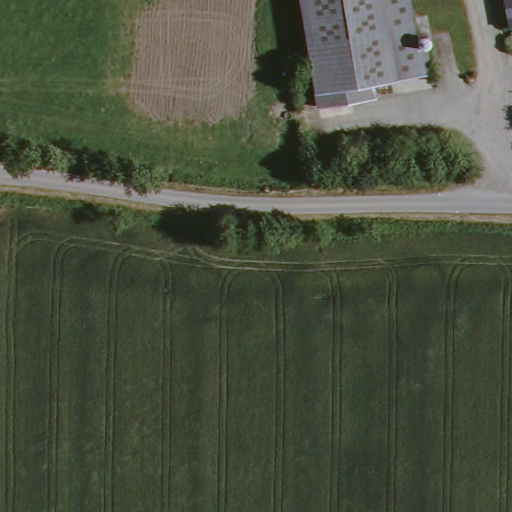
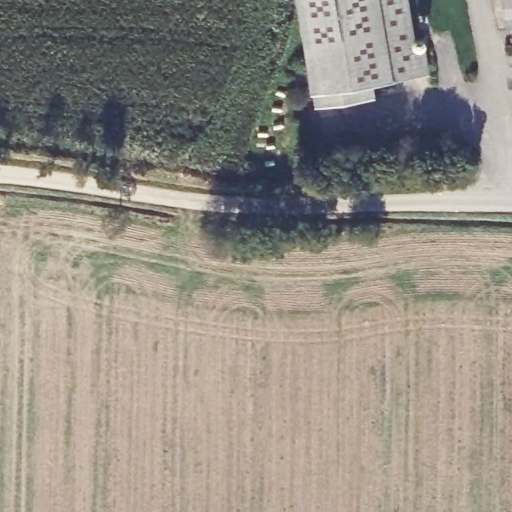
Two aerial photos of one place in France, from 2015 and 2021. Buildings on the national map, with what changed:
unchanged [(416,46),(424,45),(428,67),(371,76),(374,93),(317,102),(299,0),(408,0),(416,46)]
unchanged [(505,30),(500,0),(512,0),(512,29),(505,30)]

